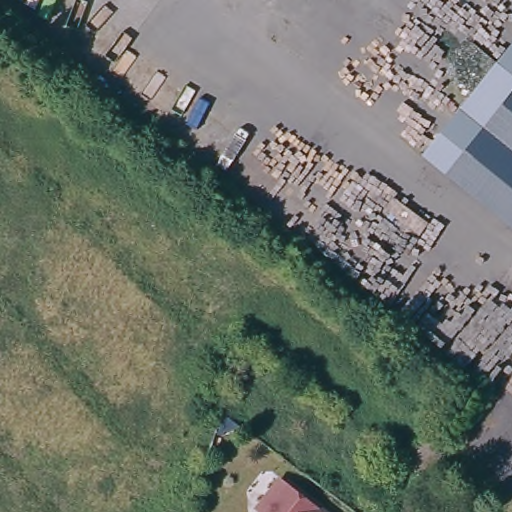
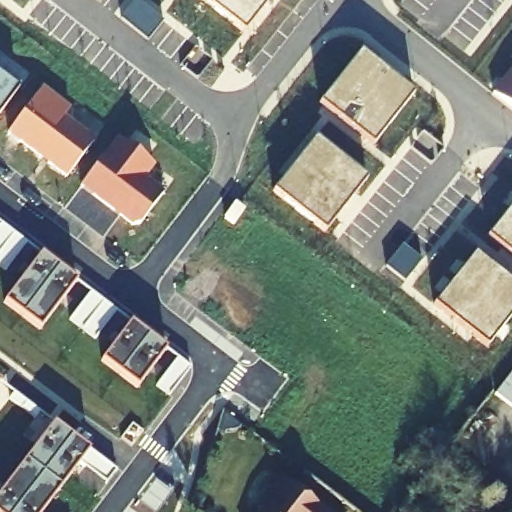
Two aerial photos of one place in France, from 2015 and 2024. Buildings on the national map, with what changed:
new [(243,33),(199,0),(269,0),(243,33)]
new [(160,24),(146,42),(120,21),(135,2),(160,24)]
demolished [(512,230),(426,163),(512,50),(512,230)]
new [(412,95),(371,146),(317,104),(360,53),(412,95)]
new [(512,109),(492,93),(512,69),(512,109)]
new [(16,90),(0,112),(0,78),(16,90)]
new [(69,111),(63,119),(93,141),(66,179),(6,136),(41,88),(69,111)]
new [(153,168),(144,182),(161,195),(138,226),(128,227),(79,190),(116,140),(153,168)]
new [(363,180),(322,233),(271,193),(315,140),(363,180)]
new [(512,207),(512,258),(487,239),(512,207)]
new [(25,247),(5,273),(0,269),(0,225),(25,247)]
new [(422,261),(405,282),(383,266),(401,245),(422,261)]
new [(512,313),(486,345),(433,304),(473,254),(512,285),(512,313)]
new [(74,283),(40,329),(3,303),(40,255),(74,283)]
new [(117,313),(92,343),(66,322),(90,292),(117,313)]
new [(164,349),(135,388),(99,362),(130,322),(164,349)]
new [(512,373),(512,410),(493,397),(512,373)]
new [(86,454),(113,474),(104,486),(75,466),(42,512),(0,512),(0,494),(52,423),(88,451),(86,454)]
unchanged [(324,512),(253,512),(279,479),(324,512)]

